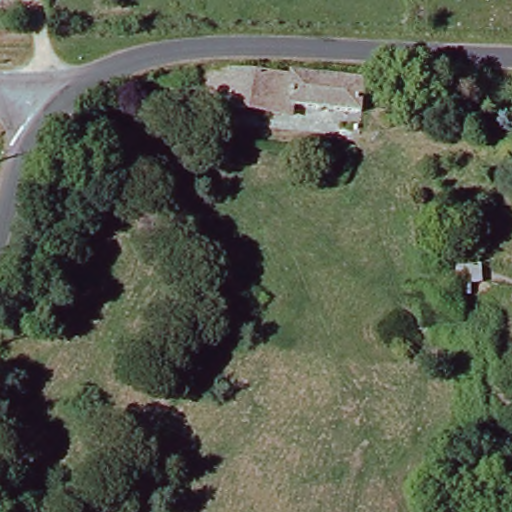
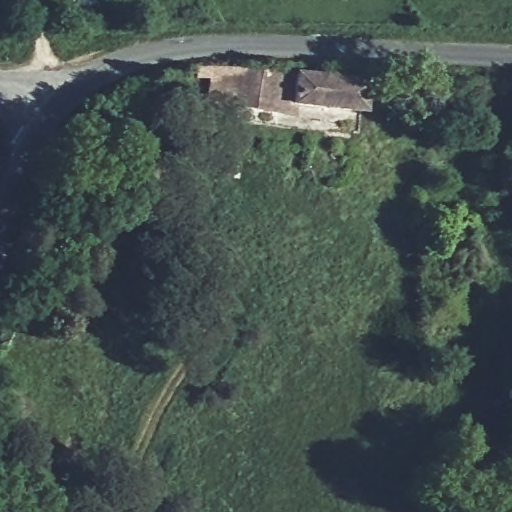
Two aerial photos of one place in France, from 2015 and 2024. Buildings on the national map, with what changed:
unchanged [(277,107),(276,115),(195,101),(200,70),(356,77),(349,117),(277,107)]

